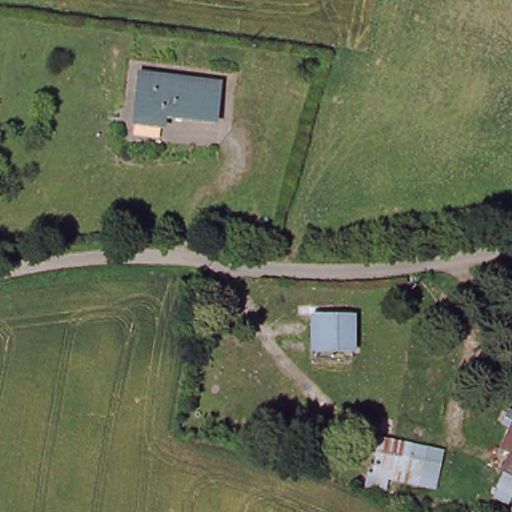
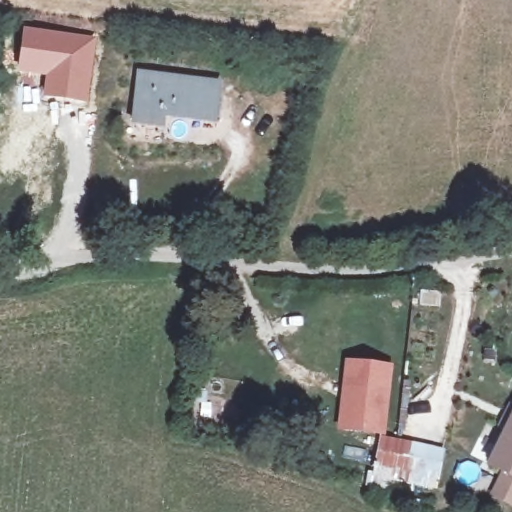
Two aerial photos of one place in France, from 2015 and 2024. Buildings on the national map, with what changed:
new [(22,26),(97,35),(87,102),(41,95),(44,75),(15,70),(22,26)]
unchanged [(167,116),(166,126),(137,123),(141,79),(221,85),(218,120),(167,116)]
demolished [(312,311),(358,312),(357,352),(309,350),(312,311)]
new [(338,428),(346,360),(393,365),(386,435),(338,428)]
new [(486,468),(504,432),(497,428),(507,405),(512,407),(512,480),(486,468)]
demolished [(500,485),(511,458),(496,449),(512,420),(512,491),(500,485)]
unchanged [(446,450),(437,490),(392,481),(388,493),(366,487),(380,438),(446,450)]

